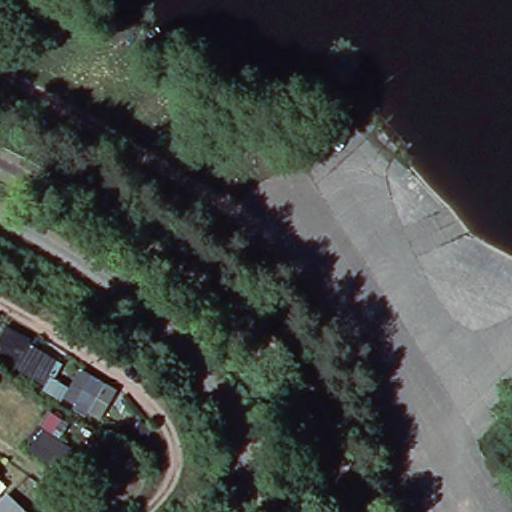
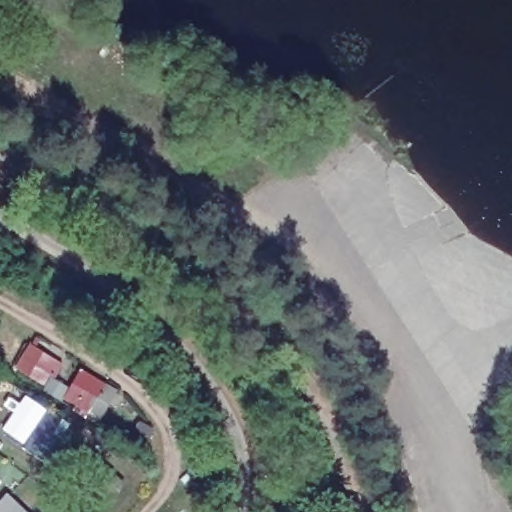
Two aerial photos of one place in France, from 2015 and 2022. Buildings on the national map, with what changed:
unchanged [(30,343),(59,361),(43,387),(15,371),(13,375),(0,368),(0,335),(4,326),(31,340),(30,343)]
unchanged [(119,393),(101,422),(45,389),(52,378),(69,387),(81,368),(119,393)]
unchanged [(69,423),(51,463),(27,452),(46,413),(69,423)]
unchanged [(0,500),(7,492),(27,512),(0,512),(0,500)]

